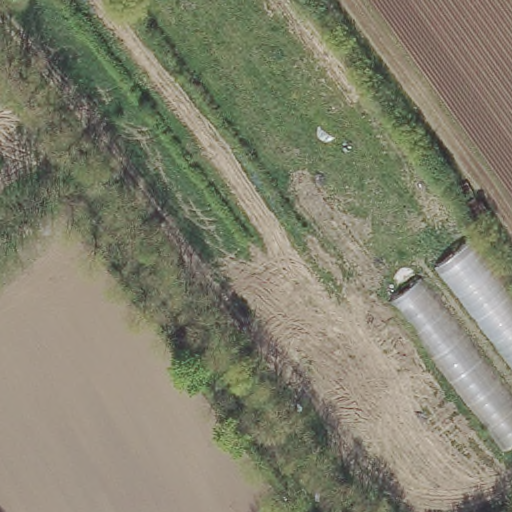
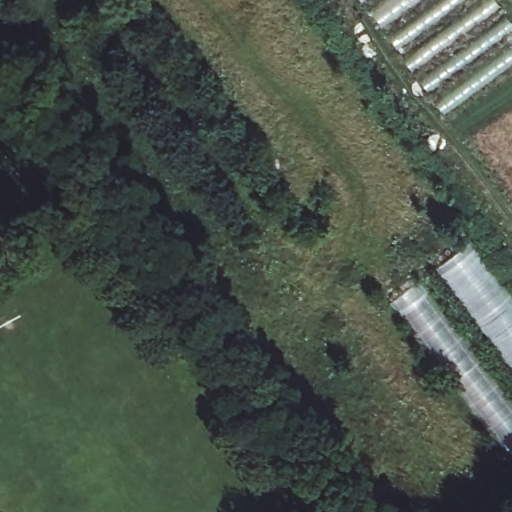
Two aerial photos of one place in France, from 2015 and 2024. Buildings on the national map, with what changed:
demolished [(382,108),(367,120),(277,0),(301,0),(382,108)]
new [(512,23),(512,63),(445,114),(361,0),(495,0),(512,23)]
unchanged [(472,242),(512,293),(512,364),(439,270),(472,242)]
unchanged [(512,387),(512,445),(507,449),(392,304),(426,276),(512,387)]

